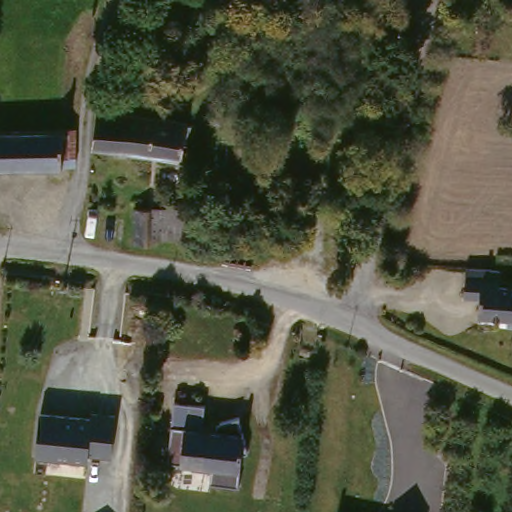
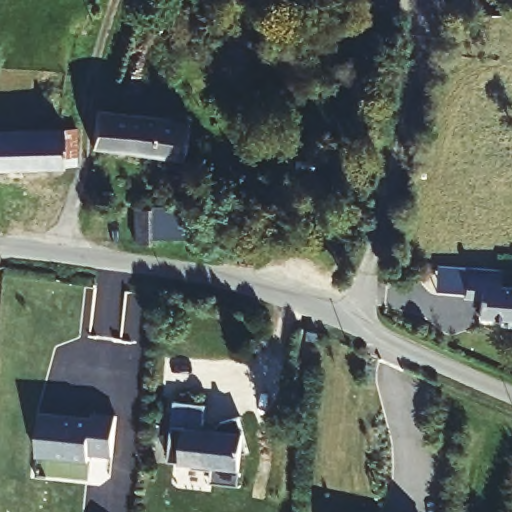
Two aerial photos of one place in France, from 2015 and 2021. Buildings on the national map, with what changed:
unchanged [(111,109),(200,120),(196,156),(175,154),(106,147),(110,111),(111,109)]
unchanged [(79,172),(20,172),(19,132),(80,129),(79,172)]
unchanged [(0,172),(0,133),(19,132),(20,172),(0,172)]
unchanged [(204,202),(205,230),(167,230),(167,239),(148,239),(150,203),(204,202)]
unchanged [(110,238),(95,238),(98,207),(115,209),(110,238)]
unchanged [(504,285),(512,286),(512,325),(510,316),(480,315),(481,297),(465,296),(467,265),(505,268),(504,285)]
unchanged [(239,409),(247,406),(256,442),(250,443),(246,476),(218,473),(220,460),(200,459),(200,455),(175,452),(181,392),(213,395),(210,420),(217,420),(216,425),(224,425),(225,415),(229,411),(239,409)]
unchanged [(109,458),(85,456),(85,463),(33,458),(37,416),(88,421),(89,416),(112,419),(109,458)]

